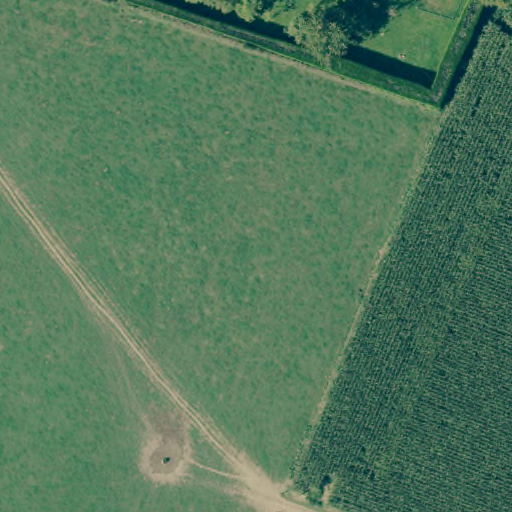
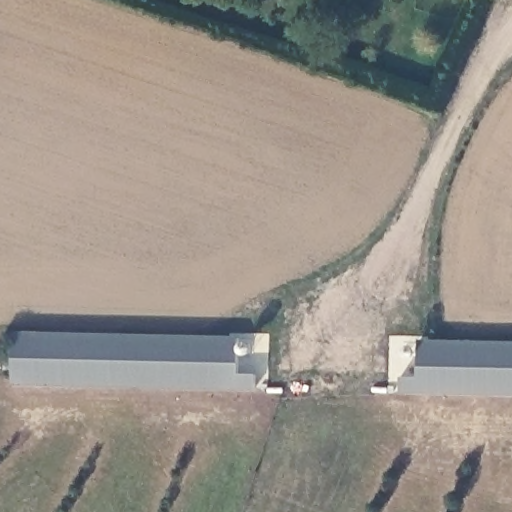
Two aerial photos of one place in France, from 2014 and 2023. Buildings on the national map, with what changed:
new [(239,337),(240,375),(256,375),(255,390),(12,385),(14,332),(239,337)]
new [(512,343),(512,395),(401,393),(402,377),(419,377),(419,341),(512,343)]

